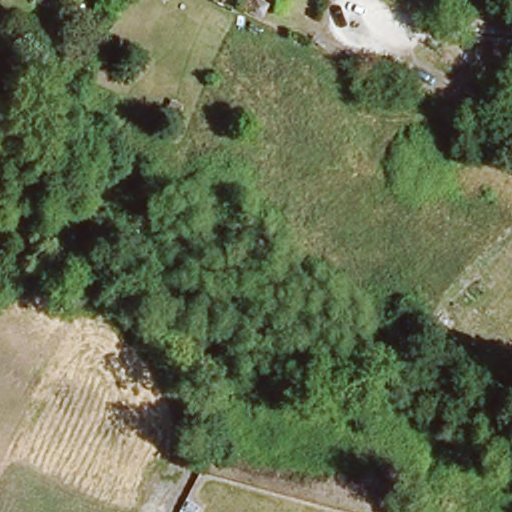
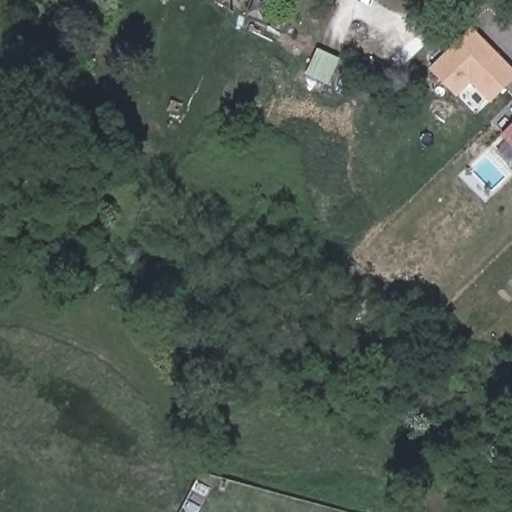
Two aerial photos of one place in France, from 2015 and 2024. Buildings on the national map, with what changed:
new [(512,67),(512,82),(491,104),(472,84),(457,98),(429,70),(473,27),(512,67)]
new [(512,125),(512,148),(501,137),(512,125)]

